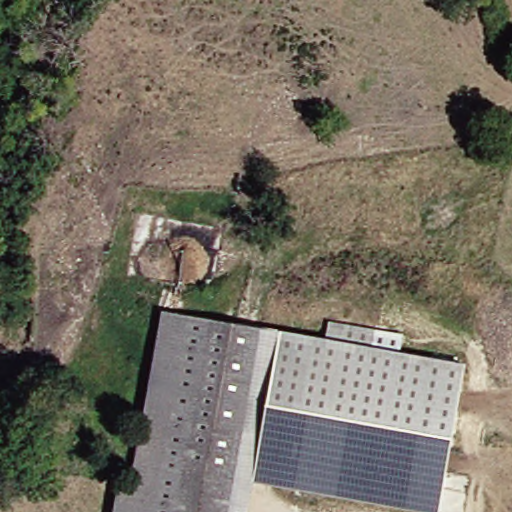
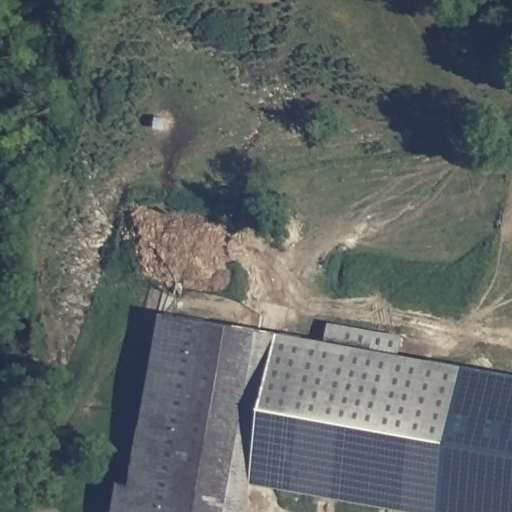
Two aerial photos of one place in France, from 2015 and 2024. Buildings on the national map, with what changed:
unchanged [(168,512),(109,512),(118,474),(129,477),(166,305),(210,315),(168,512)]
unchanged [(266,329),(225,512),(168,512),(210,315),(266,329)]
unchanged [(269,329),(326,339),(329,324),(376,332),(374,347),(469,364),(439,512),(416,512),(255,486),(250,512),(236,512),(269,329)]
new [(469,364),(512,372),(512,512),(439,512),(469,364)]

